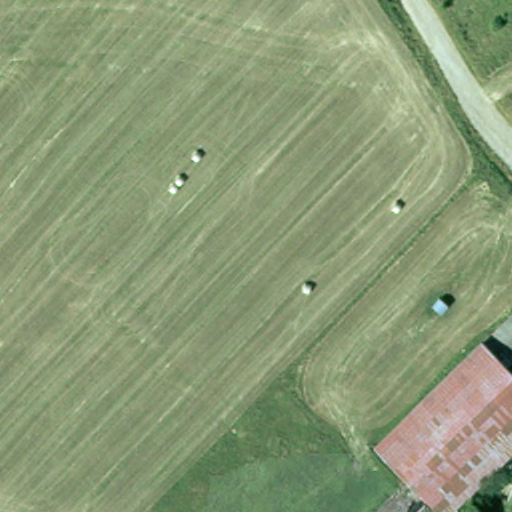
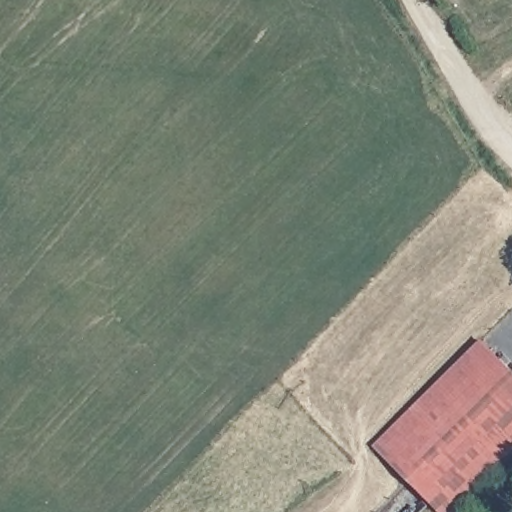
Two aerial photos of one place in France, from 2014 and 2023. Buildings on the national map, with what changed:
unchanged [(377,452),(484,347),(512,375),(512,458),(458,512),(436,512),(377,452)]

